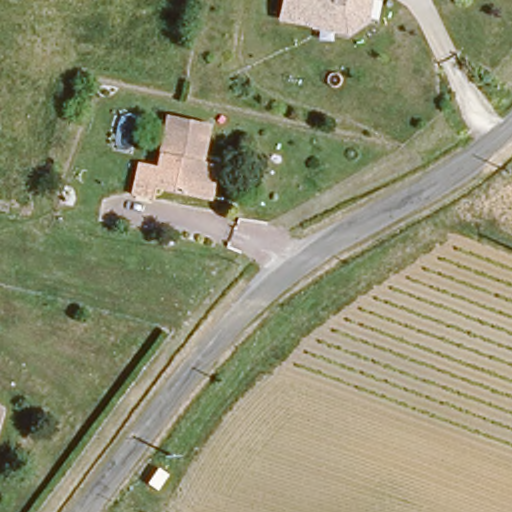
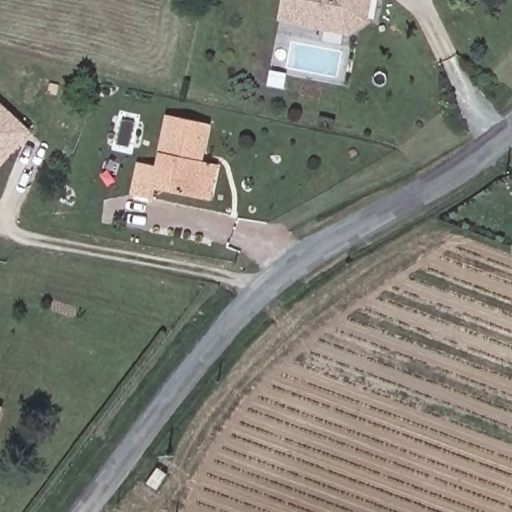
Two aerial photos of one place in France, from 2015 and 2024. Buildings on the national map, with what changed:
unchanged [(277,15),(280,0),(358,0),(356,11),(345,21),(313,17),(312,20),(277,15)]
unchanged [(313,17),(345,21),(356,11),(358,0),(370,0),(365,34),(312,25),(312,20),(313,17)]
new [(31,133),(0,167),(0,104),(31,133)]
unchanged [(209,200),(200,198),(155,190),(154,201),(132,198),(138,163),(158,166),(167,117),(207,124),(201,161),(206,162),(216,164),(209,200)]

